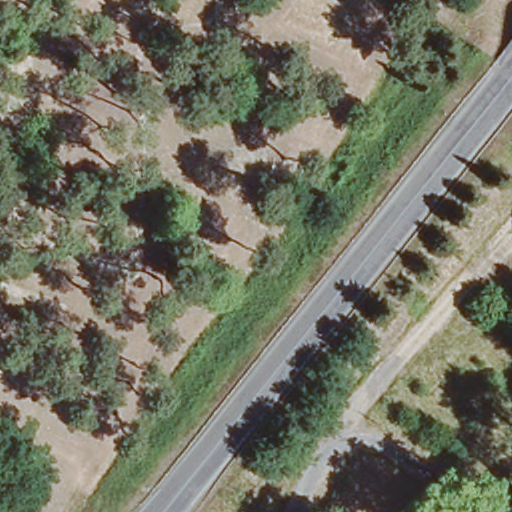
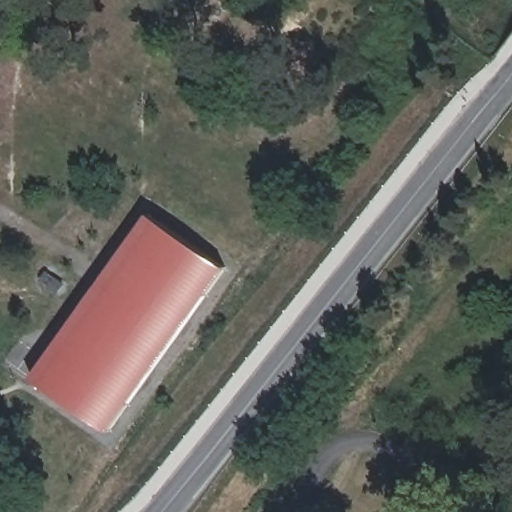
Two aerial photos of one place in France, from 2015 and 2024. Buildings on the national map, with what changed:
new [(107,433),(30,378),(147,213),(224,267),(107,433)]

